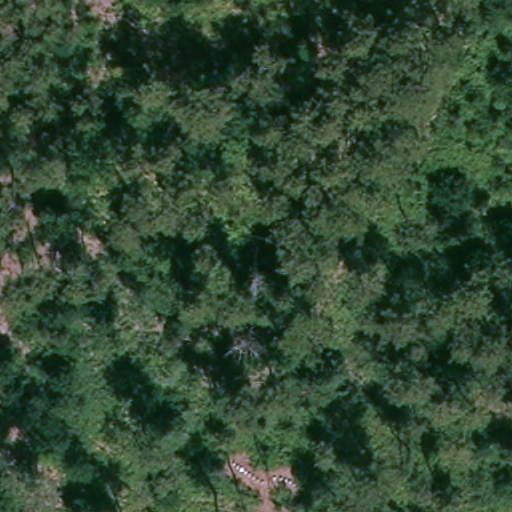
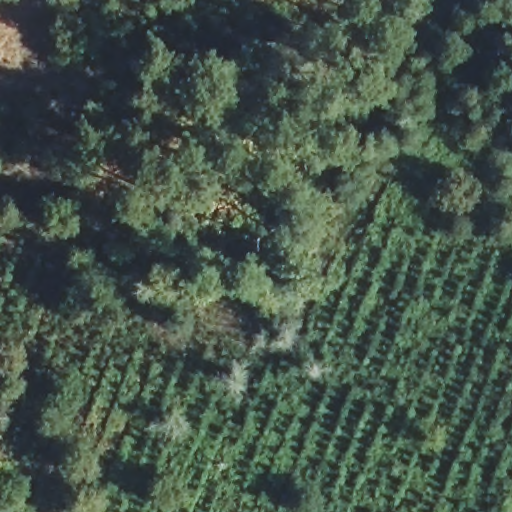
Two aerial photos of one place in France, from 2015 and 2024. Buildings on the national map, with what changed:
[]

